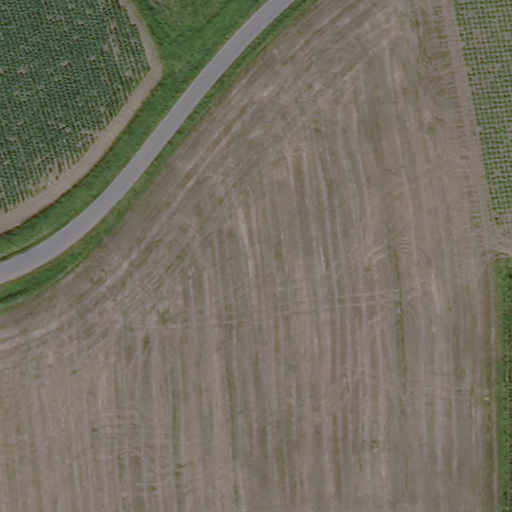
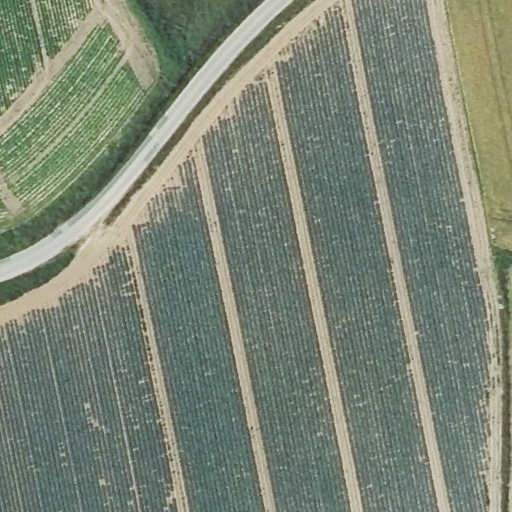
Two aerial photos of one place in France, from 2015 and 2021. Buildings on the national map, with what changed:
[]

